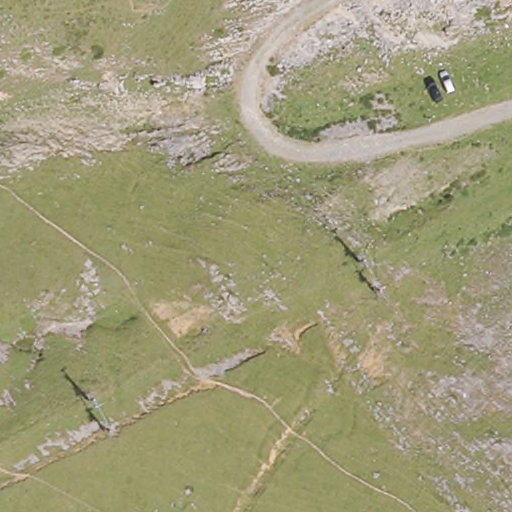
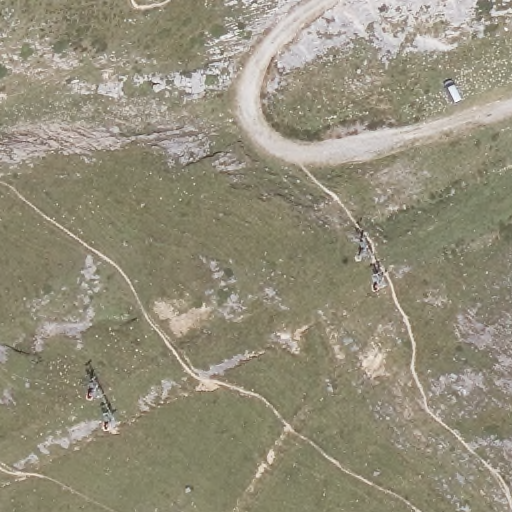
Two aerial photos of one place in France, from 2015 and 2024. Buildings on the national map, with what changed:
[]

